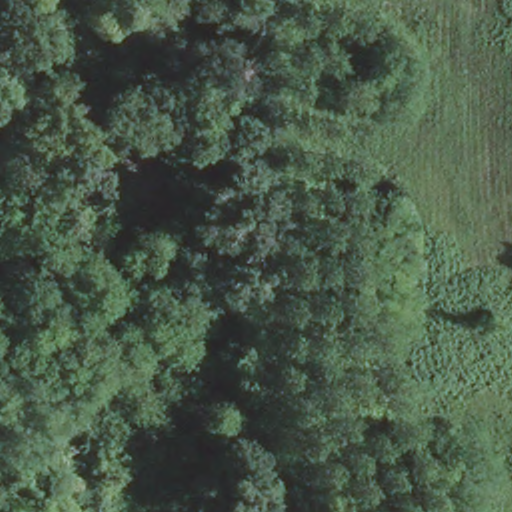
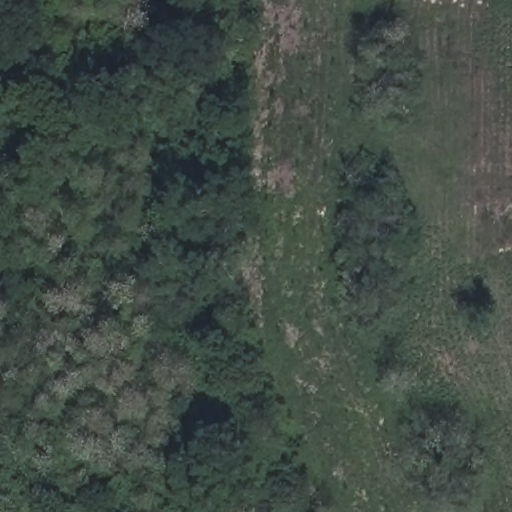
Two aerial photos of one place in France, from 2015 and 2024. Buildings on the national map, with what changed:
unchanged [(139,394),(129,376),(174,354),(183,371),(139,394)]

